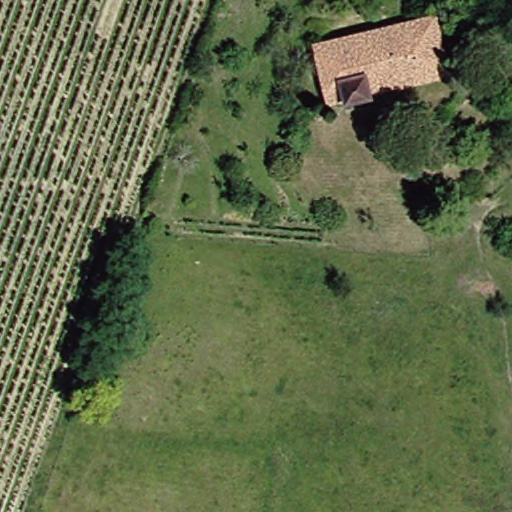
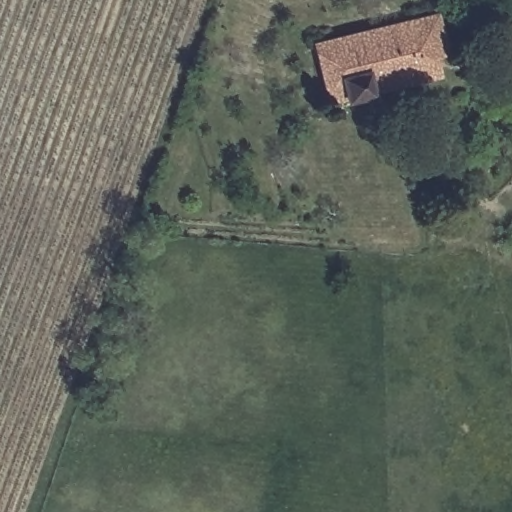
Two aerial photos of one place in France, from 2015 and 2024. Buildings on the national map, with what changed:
unchanged [(305,40),(413,14),(425,11),(436,49),(423,53),(428,72),(405,78),(361,89),(362,92),(337,99),(336,95),(320,99),(317,89),(305,40)]
unchanged [(482,296),(467,288),(477,272),(492,280),(482,296)]

